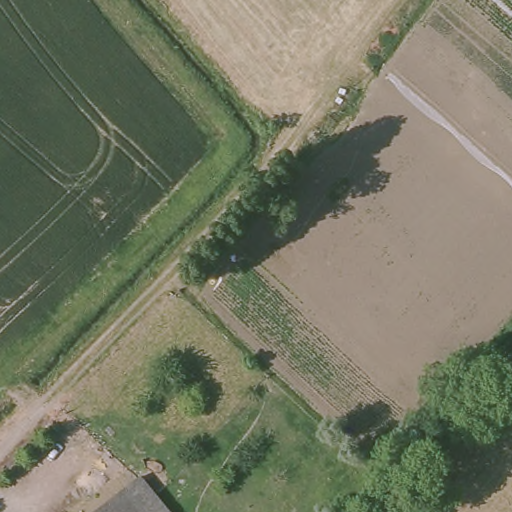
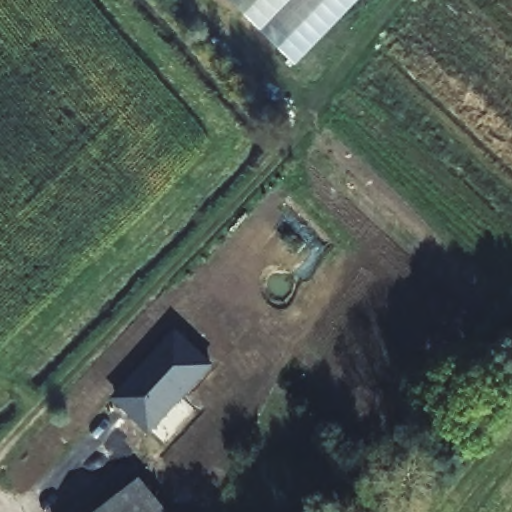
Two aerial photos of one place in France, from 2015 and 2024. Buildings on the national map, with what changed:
new [(295,64),(229,0),(357,0),(295,64)]
new [(215,364),(151,433),(112,397),(177,333),(215,364)]
unchanged [(99,512),(125,482),(155,506),(162,512),(99,512)]

